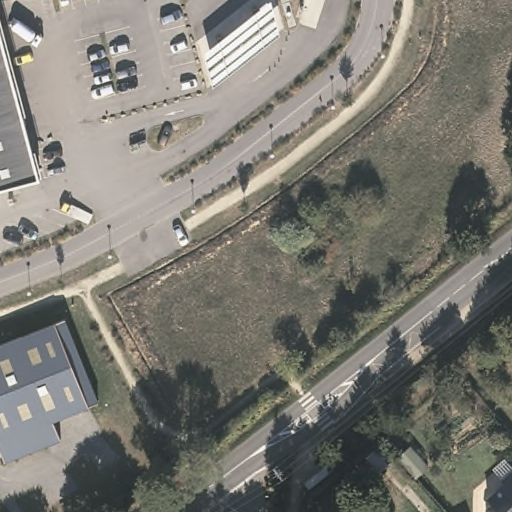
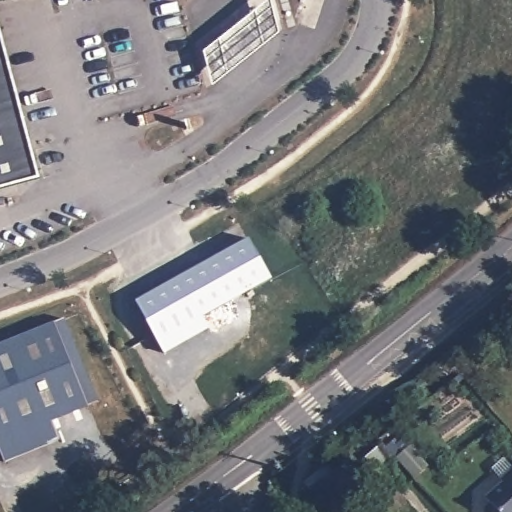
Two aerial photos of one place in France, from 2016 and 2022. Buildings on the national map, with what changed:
unchanged [(204,50),(270,3),(280,38),(211,85),(204,50)]
unchanged [(44,180),(0,192),(0,22),(44,180)]
new [(202,315),(210,328),(165,353),(135,300),(248,236),(271,278),(202,315)]
unchanged [(64,318),(97,402),(54,421),(61,440),(5,462),(0,448),(0,344),(64,318)]
unchanged [(486,506),(491,502),(486,497),(503,481),(501,479),(512,469),(512,512),(486,512),(486,506)]

